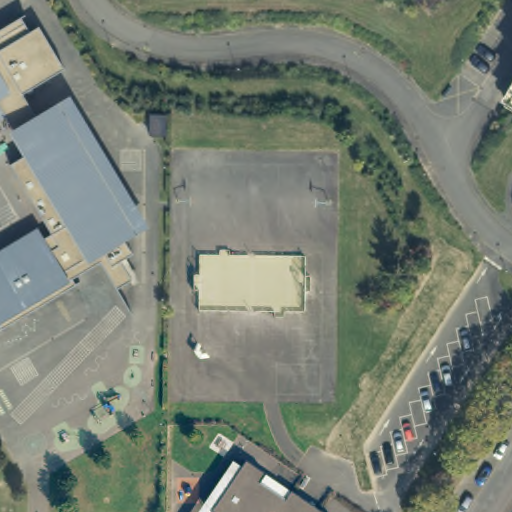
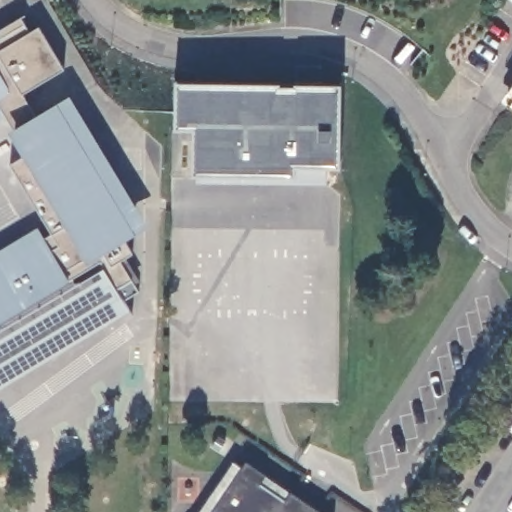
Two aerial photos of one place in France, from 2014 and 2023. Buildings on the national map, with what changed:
new [(4,6),(0,8),(0,0),(4,6)]
unchanged [(2,36),(0,32),(0,28),(24,14),(32,29),(41,24),(67,66),(25,91),(41,116),(62,105),(135,227),(125,234),(134,252),(122,258),(133,278),(120,286),(102,260),(75,276),(77,283),(2,326),(0,322),(0,250),(40,226),(45,235),(52,230),(12,161),(29,151),(5,110),(0,113),(0,37),(2,36)]
new [(345,86),(340,164),(340,171),(292,170),(292,179),(190,177),(192,135),(171,135),(172,79),(345,86)]
new [(2,326),(77,283),(75,276),(102,260),(120,286),(133,278),(140,290),(124,300),(130,310),(0,389),(0,322),(2,326)]
unchanged [(246,458),(267,472),(261,481),(285,497),(291,488),(295,491),(325,512),(214,512),(211,510),(246,458)]

